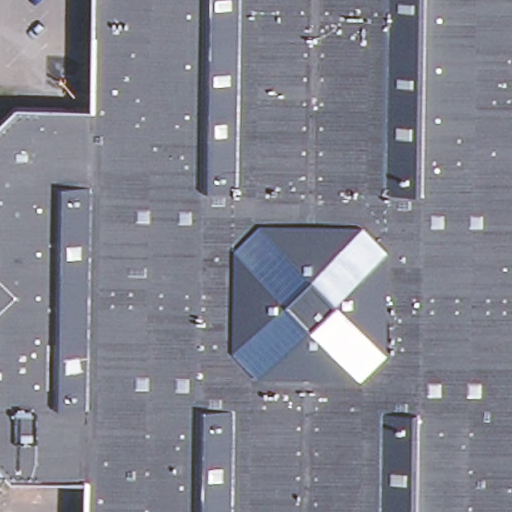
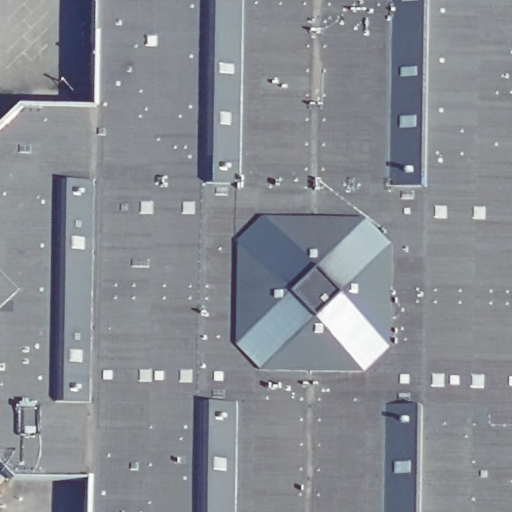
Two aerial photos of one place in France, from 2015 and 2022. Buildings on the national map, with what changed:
unchanged [(84,482),(10,481),(0,471),(0,122),(15,108),(90,109),(91,0),(512,0),(512,512),(83,512),(84,482)]

